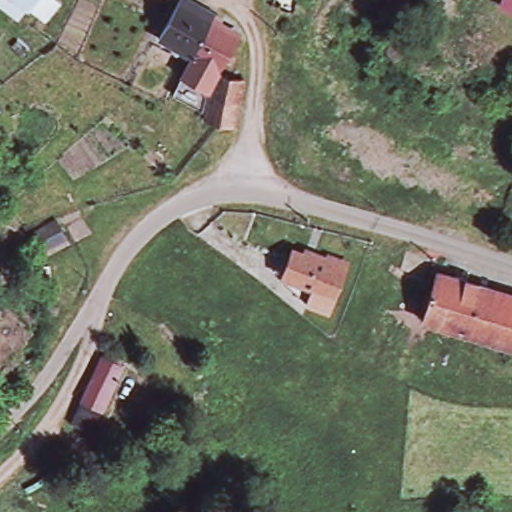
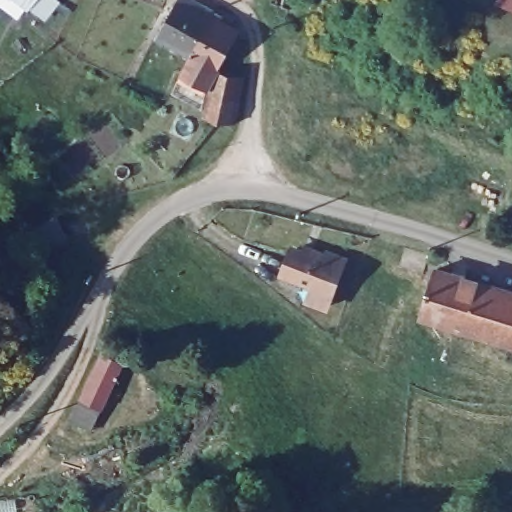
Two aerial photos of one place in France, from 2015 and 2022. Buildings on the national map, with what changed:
unchanged [(47,24),(28,8),(17,20),(0,9),(0,0),(57,0),(62,4),(47,24)]
unchanged [(502,9),(506,0),(512,0),(512,14),(502,9)]
unchanged [(162,35),(177,1),(211,18),(196,50),(162,35)]
unchanged [(186,74),(192,59),(196,50),(211,18),(238,30),(219,71),(243,76),(238,100),(232,129),(217,124),(201,121),(208,93),(210,86),(186,74)]
unchanged [(49,241),(57,254),(35,267),(28,253),(49,241)]
unchanged [(306,301),(281,280),(284,274),(294,249),(313,257),(315,252),(324,257),(326,254),(344,263),(331,294),(324,309),(306,301)]
unchanged [(423,313),(440,268),(483,287),(464,330),(423,313)]
unchanged [(483,287),(512,299),(512,308),(497,344),(464,330),(483,287)]
unchanged [(512,308),(512,351),(497,344),(512,308)]
unchanged [(74,423),(84,402),(105,361),(107,357),(125,367),(123,371),(103,412),(93,432),(74,423)]

